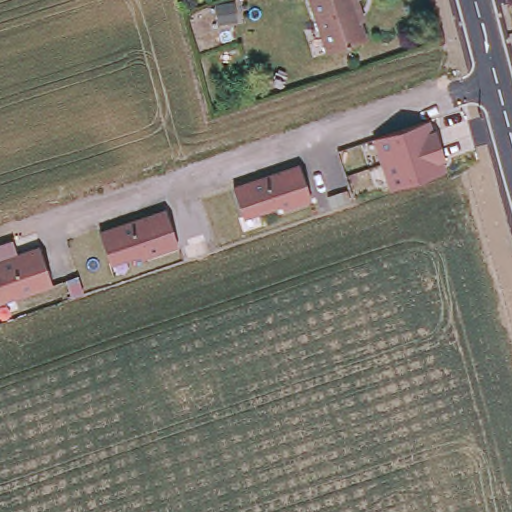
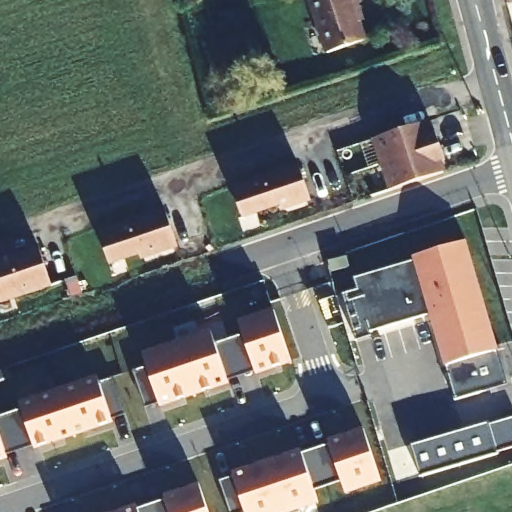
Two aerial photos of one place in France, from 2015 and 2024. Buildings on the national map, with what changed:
unchanged [(366,3),(359,5),(369,41),(329,55),(313,0),(365,0),(366,3)]
unchanged [(427,119),(445,172),(391,189),(373,135),(427,119)]
unchanged [(299,165),(311,203),(283,211),(282,209),(244,220),(234,186),(299,165)]
unchanged [(165,209),(179,248),(142,260),(141,258),(112,267),(99,230),(165,209)]
unchanged [(16,251),(39,245),(52,287),(0,303),(0,243),(13,240),(16,251)]
new [(467,240),(510,384),(457,400),(431,314),(371,332),(372,337),(357,342),(342,293),(357,290),(354,277),(415,259),(414,256),(467,240)]
new [(347,257),(350,267),(332,272),(329,262),(347,257)]
new [(147,365),(143,353),(212,330),(216,342),(230,337),(243,332),(239,321),(275,309),(292,360),(257,372),(256,370),(229,379),(229,381),(161,405),(160,402),(146,407),(133,370),(147,365)]
new [(20,403),(97,376),(100,381),(114,376),(127,414),(112,419),(113,421),(36,447),(35,445),(7,455),(7,457),(0,460),(0,416),(22,408),(20,403)]
new [(491,421),(491,423),(512,417),(512,448),(500,452),(500,453),(422,477),(412,445),(491,421)]
new [(235,475),(234,472),(302,449),(303,451),(331,442),(330,440),(365,427),(382,479),(347,491),(343,479),(329,483),(316,488),(320,500),(285,512),(247,512),(247,511),(246,512),(231,512),(221,480),(235,475)]
new [(139,507),(152,503),(167,498),(166,496),(201,484),(210,512),(118,512),(138,505),(139,507)]

